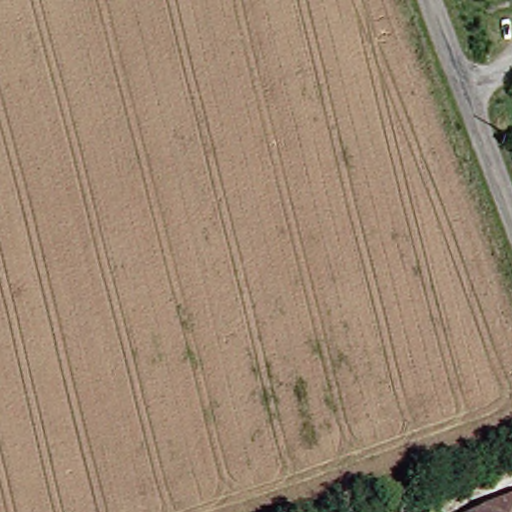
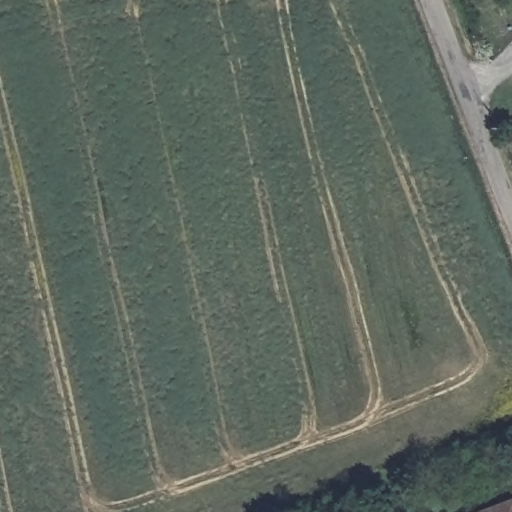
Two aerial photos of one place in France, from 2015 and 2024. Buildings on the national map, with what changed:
unchanged [(512,510),(512,512),(505,512),(512,510)]

